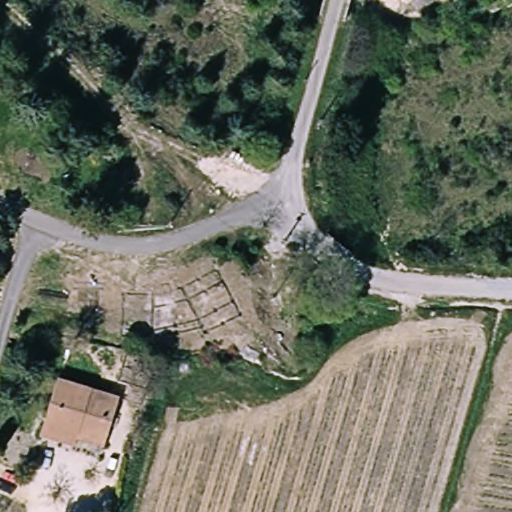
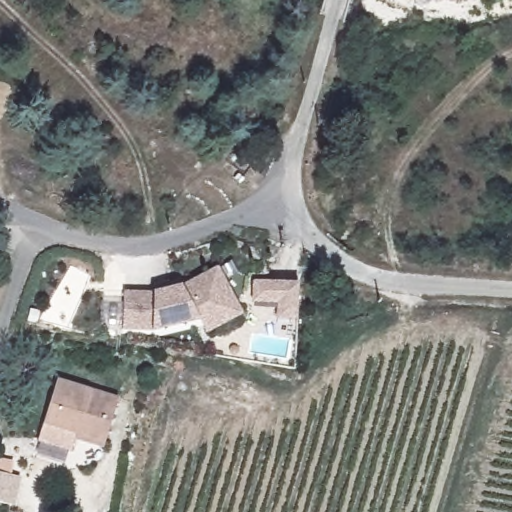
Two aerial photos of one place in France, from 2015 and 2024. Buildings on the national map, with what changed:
new [(206,335),(198,320),(152,333),(123,332),(125,291),(154,290),(181,285),(216,266),(242,315),(206,335)]
new [(298,281),(295,321),(276,320),(276,305),(253,303),(254,282),(298,281)]
unchanged [(40,440),(44,425),(55,382),(117,402),(104,448),(80,442),(77,450),(40,440)]
new [(15,506),(0,502),(0,474),(22,478),(15,506)]

